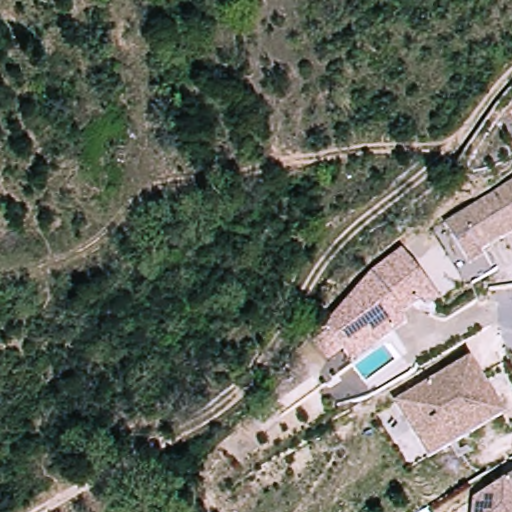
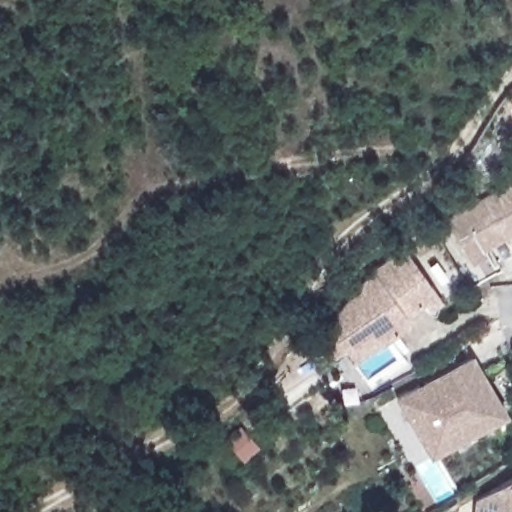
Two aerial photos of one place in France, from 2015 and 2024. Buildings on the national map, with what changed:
unchanged [(501,236),(479,201),(512,180),(512,228),(501,236)]
unchanged [(474,261),(469,263),(462,254),(443,224),(446,221),(479,201),(501,236),(477,251),(481,256),(474,261)]
unchanged [(408,247),(435,291),(404,310),(377,267),(408,247)]
unchanged [(334,310),(377,267),(404,310),(409,317),(378,336),(372,326),(356,336),(345,342),(329,315),(334,310)]
unchanged [(397,396),(470,354),(502,410),(428,452),(398,401),(396,396),(397,396)]
unchanged [(477,496),(512,474),(512,512),(474,512),(477,496)]

